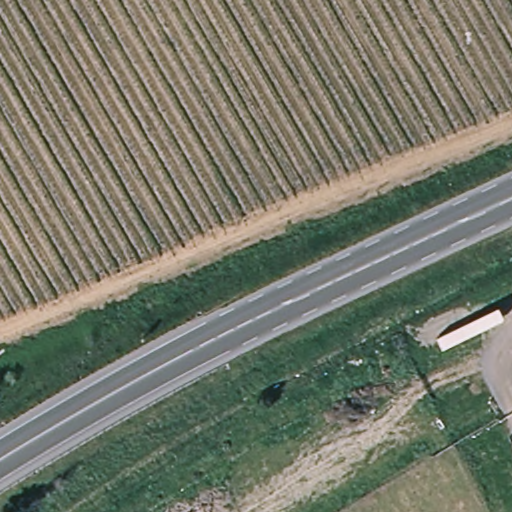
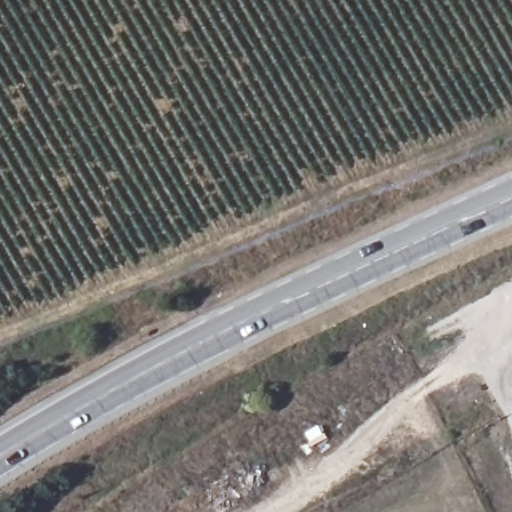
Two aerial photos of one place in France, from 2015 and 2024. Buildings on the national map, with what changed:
[]

